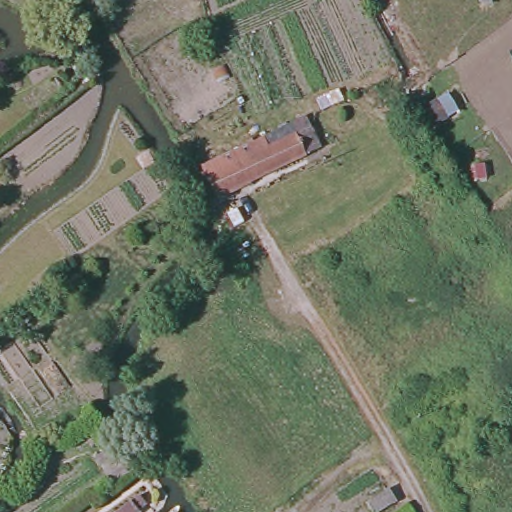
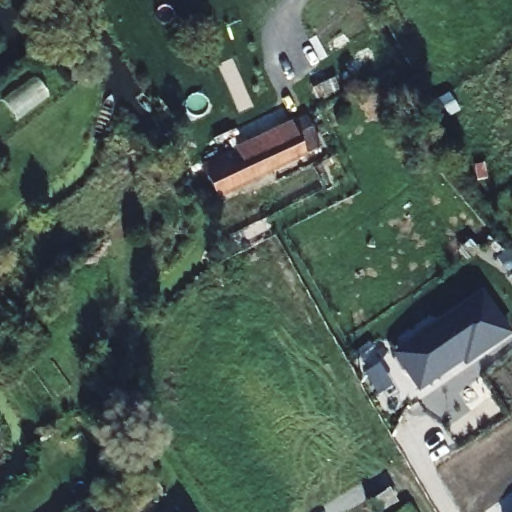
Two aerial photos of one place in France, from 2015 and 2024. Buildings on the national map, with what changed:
unchanged [(231,153),(230,151),(259,136),(260,138),(286,123),(302,115),(306,127),(317,147),(302,155),(213,199),(200,170),(231,153)]
new [(510,279),(512,277),(512,281),(510,279)]
demolished [(203,287),(220,310),(212,316),(221,329),(186,353),(161,316),(203,287)]
new [(391,355),(447,318),(450,323),(480,303),(475,297),(485,296),(512,333),(512,334),(467,365),(465,362),(417,393),(391,355)]
unchanged [(90,498),(97,508),(91,512),(61,512),(88,493),(90,498)]
unchanged [(376,512),(370,512),(363,504),(381,493),(388,504),(376,512)]

